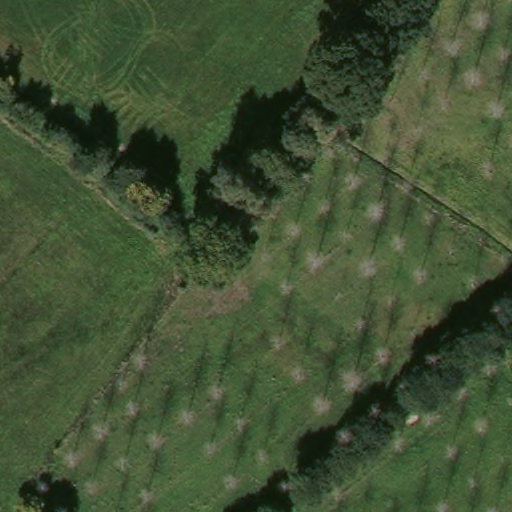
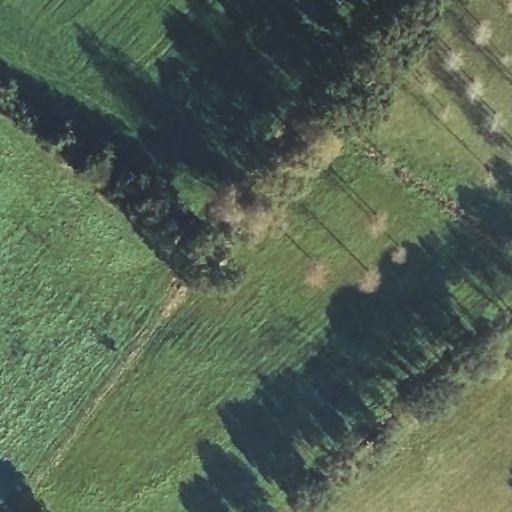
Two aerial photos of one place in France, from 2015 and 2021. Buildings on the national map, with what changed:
[]

